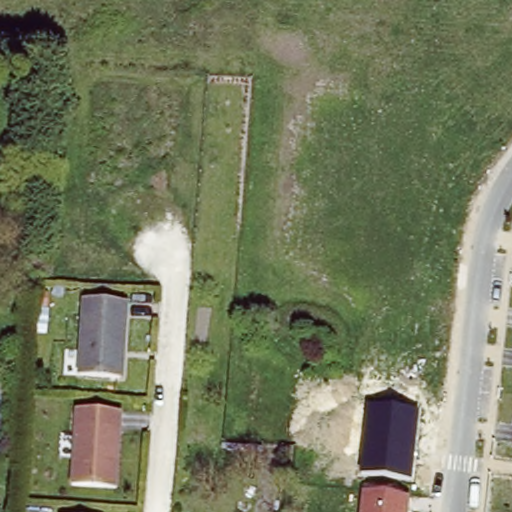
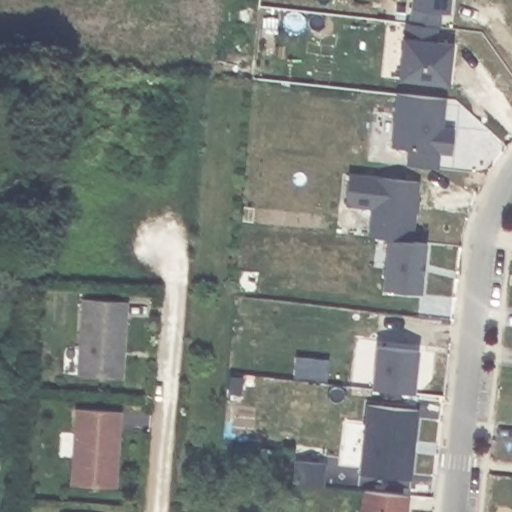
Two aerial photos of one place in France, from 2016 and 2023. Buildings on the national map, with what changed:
new [(401,80),(405,37),(407,22),(411,22),(413,9),(414,0),(453,0),(452,13),(445,11),(439,41),(454,43),(450,85),(401,80)]
new [(398,94),(446,99),(442,136),(455,137),(452,155),(440,154),(438,170),(408,166),(410,150),(392,148),(398,94)]
new [(349,175),(419,183),(412,242),(389,240),(369,238),(372,209),(346,206),(349,175)]
new [(389,240),(412,242),(427,244),(421,295),(384,291),(389,240)]
unchanged [(124,301),(121,349),(117,349),(116,377),(76,375),(82,299),(124,301)]
new [(374,387),(378,346),(420,350),(416,392),(374,387)]
new [(7,357),(19,358),(17,376),(6,375),(7,357)]
unchanged [(114,405),(113,427),(117,427),(113,482),(70,480),(75,403),(114,405)]
unchanged [(361,473),(367,406),(419,411),(412,480),(361,473)]
unchanged [(410,497),(408,512),(360,512),(362,492),(410,497)]

